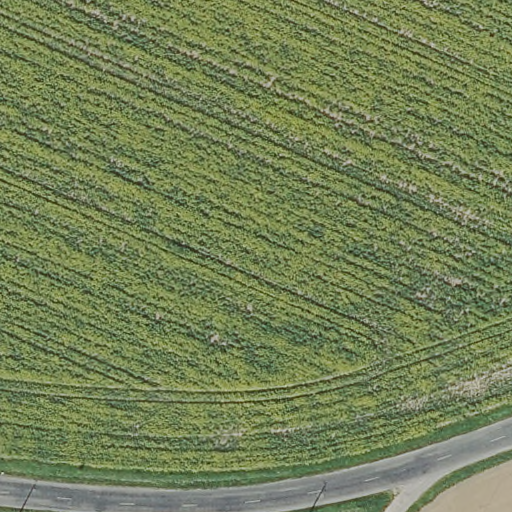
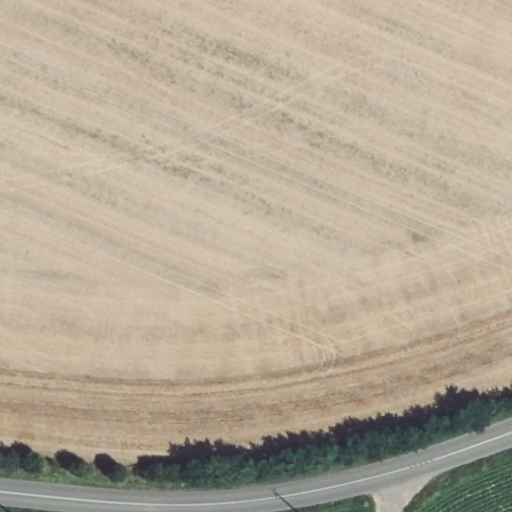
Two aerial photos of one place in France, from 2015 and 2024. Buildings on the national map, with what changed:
[]

